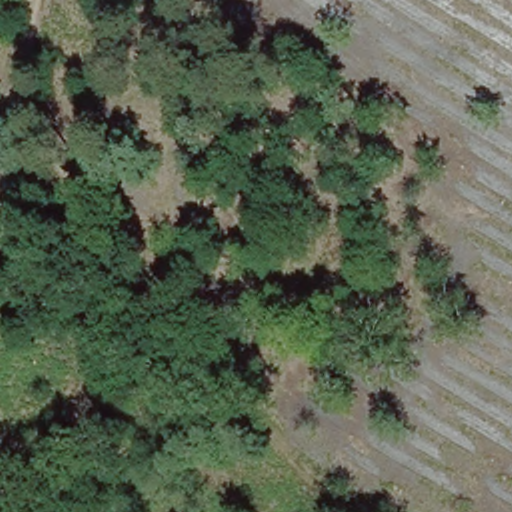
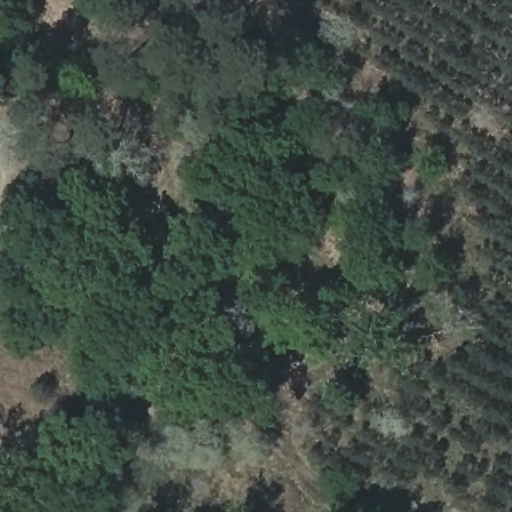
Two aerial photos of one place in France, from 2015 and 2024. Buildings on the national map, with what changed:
unchanged [(62,189),(66,169),(91,175),(88,195),(62,189)]

